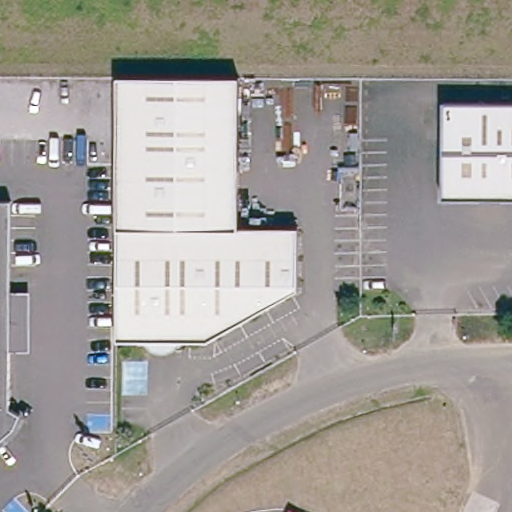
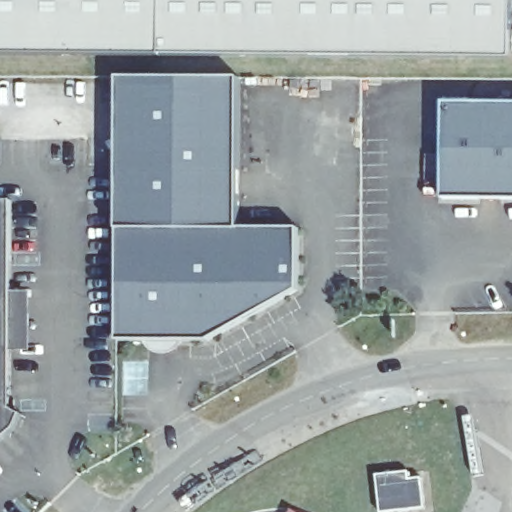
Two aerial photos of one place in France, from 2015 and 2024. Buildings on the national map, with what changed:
new [(0,51),(0,0),(512,0),(512,57),(0,51)]
unchanged [(293,287),(203,336),(112,336),(114,72),(235,73),(235,74),(234,224),(293,225),(293,287)]
unchanged [(512,99),(512,196),(438,195),(438,99),(512,99)]
unchanged [(4,405),(16,410),(9,424),(0,432),(0,196),(7,196),(4,405)]
new [(425,505),(381,510),(377,475),(408,470),(410,478),(421,477),(425,505)]

